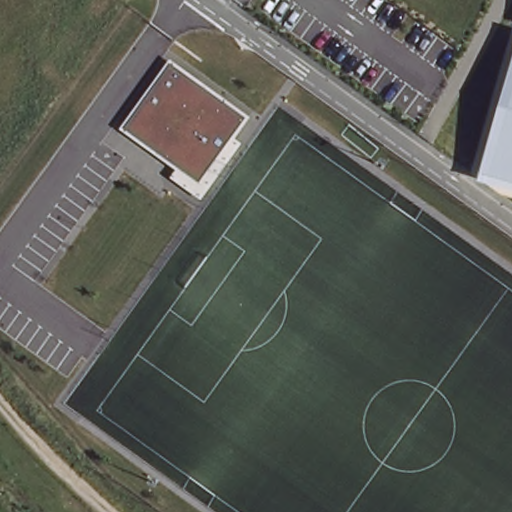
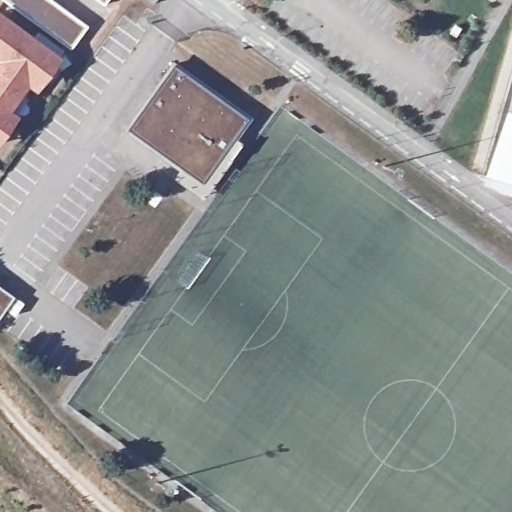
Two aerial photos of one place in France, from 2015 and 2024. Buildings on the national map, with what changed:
new [(70,51),(0,0),(48,0),(86,29),(70,51)]
new [(94,0),(109,0),(104,7),(94,0)]
new [(48,55),(0,120),(0,20),(31,44),(48,55)]
new [(63,54),(0,138),(0,120),(48,55),(31,44),(38,34),(63,54)]
unchanged [(479,184),(512,65),(512,194),(479,184)]
unchanged [(234,148),(230,145),(201,184),(125,131),(173,66),(251,123),(234,148)]
new [(0,320),(0,290),(15,300),(0,320)]

